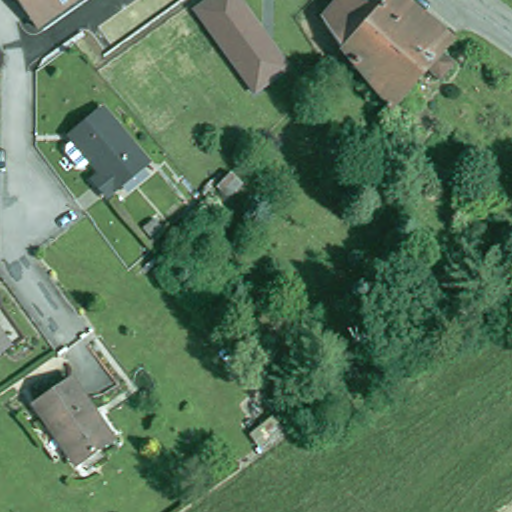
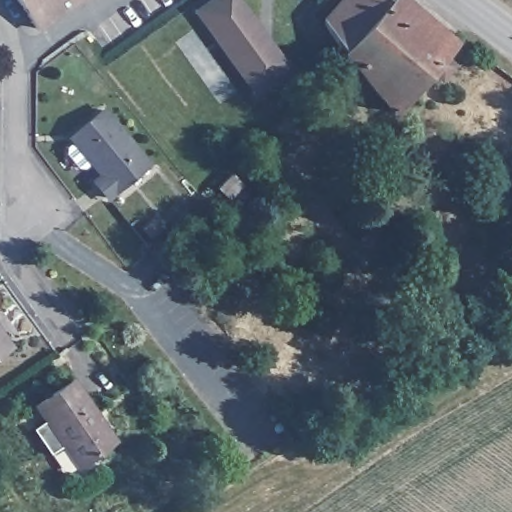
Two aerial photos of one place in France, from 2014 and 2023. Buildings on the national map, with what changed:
unchanged [(14,0),(82,0),(36,31),(14,0)]
unchanged [(256,96),(192,9),(205,0),(240,0),(288,69),(256,96)]
unchanged [(344,0),(392,0),(343,46),(324,19),(344,0)]
unchanged [(446,59),(453,65),(458,68),(442,86),(426,75),(394,106),(389,112),(343,46),(392,0),(410,0),(458,46),(446,59)]
unchanged [(98,184),(105,178),(72,139),(105,110),(152,163),(113,199),(98,184)]
unchanged [(0,355),(0,329),(12,347),(0,355)]
unchanged [(35,404),(68,380),(111,437),(78,464),(35,404)]

